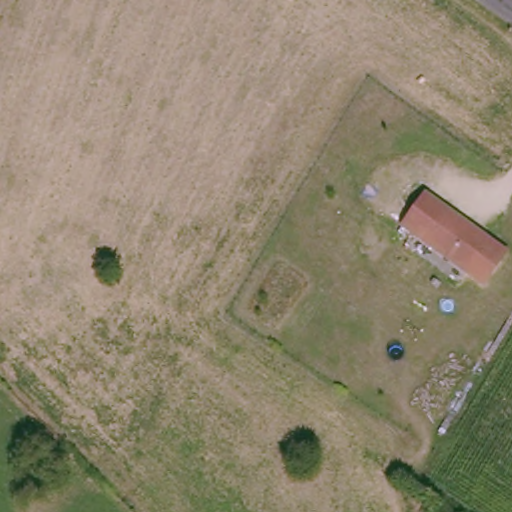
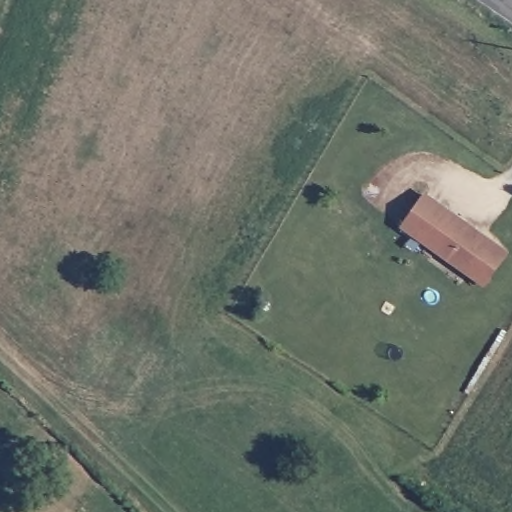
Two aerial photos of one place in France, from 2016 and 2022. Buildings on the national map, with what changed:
unchanged [(504,252),(483,282),(405,225),(425,196),(504,252)]

